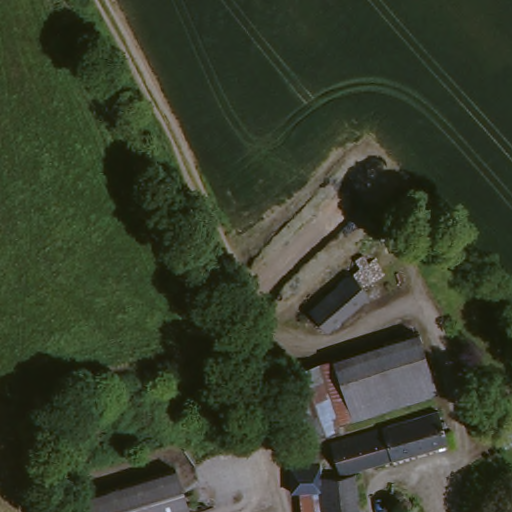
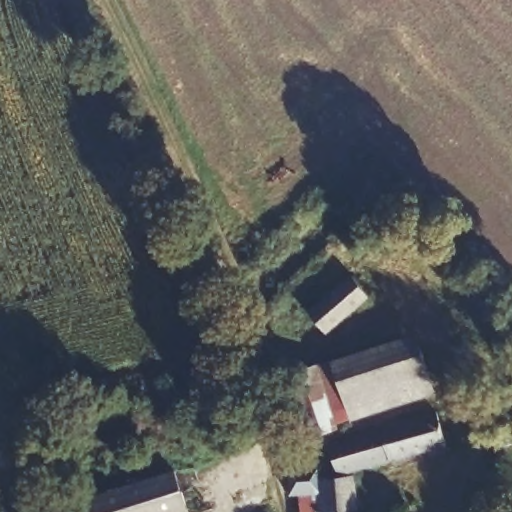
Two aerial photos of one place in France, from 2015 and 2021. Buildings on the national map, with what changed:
unchanged [(318,348),(297,328),(349,282),(370,305),(318,348)]
unchanged [(420,353),(431,410),(328,426),(320,369),(420,353)]
unchanged [(328,426),(329,436),(300,440),(290,374),(320,369),(328,426)]
unchanged [(356,479),(360,512),(321,512),(320,503),(291,499),(290,475),(333,480),(330,451),(431,419),(442,450),(356,479)]
unchanged [(183,512),(78,512),(76,505),(170,474),(183,512)]

